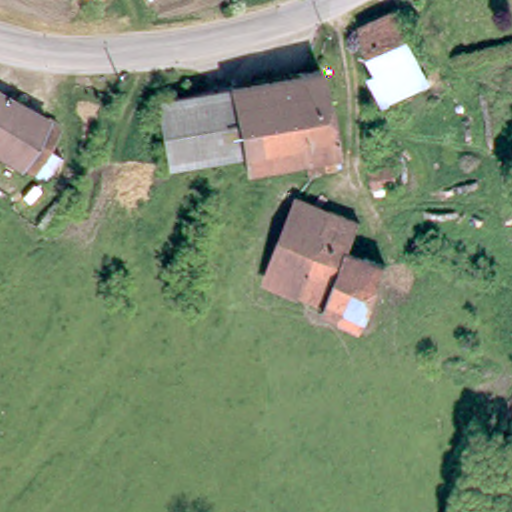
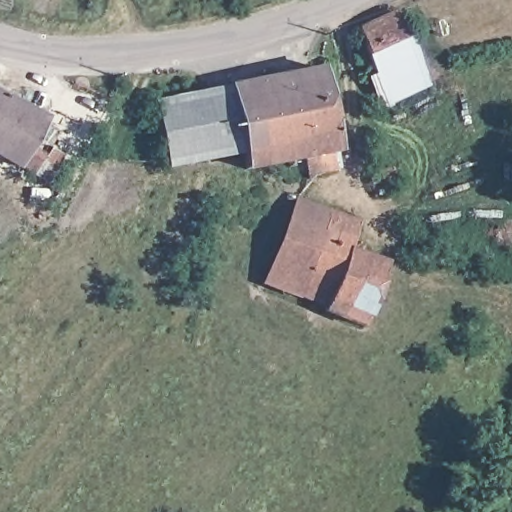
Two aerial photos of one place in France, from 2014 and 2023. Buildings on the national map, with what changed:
unchanged [(380,109),(364,70),(375,66),(365,44),(360,46),(357,38),(362,36),(357,26),(392,9),(423,80),(426,87),(389,97),(392,105),(380,109)]
unchanged [(304,168),(302,153),(240,165),(237,150),(205,156),(181,93),(225,85),(225,82),(315,64),(331,147),(327,148),(330,163),(304,168)]
unchanged [(165,164),(152,99),(181,93),(205,156),(165,164)]
unchanged [(41,121),(16,163),(14,166),(0,157),(0,94),(42,119),(41,121)]
unchanged [(53,128),(43,146),(55,153),(40,179),(16,163),(41,121),(53,128)]
unchanged [(382,153),(385,171),(367,175),(362,157),(382,153)]
unchanged [(290,287),(261,273),(292,204),(296,196),(325,209),(290,287)]
unchanged [(353,222),(343,245),(380,262),(357,312),(352,325),(315,308),(318,301),(290,287),(325,209),(353,222)]

